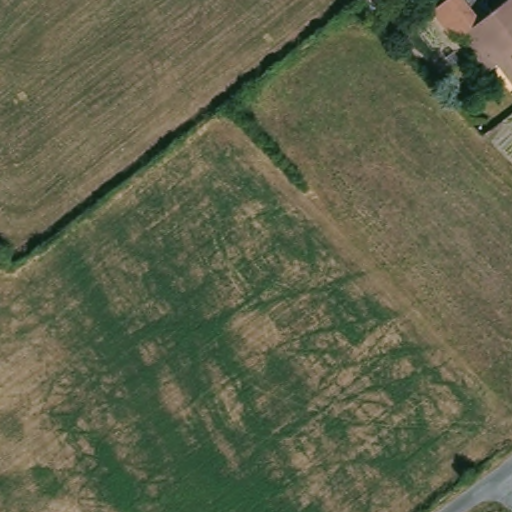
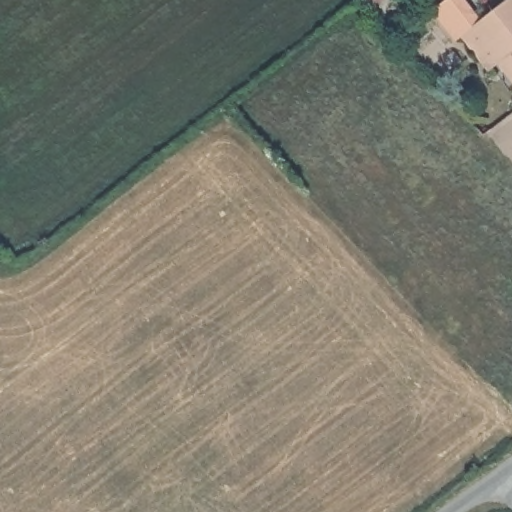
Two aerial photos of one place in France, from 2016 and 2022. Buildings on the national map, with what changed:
unchanged [(377,6),(369,14),(358,2),(356,0),(371,0),(377,6)]
unchanged [(504,61),(494,70),(467,36),(461,40),(437,10),(450,0),(471,0),(486,20),(511,0),(512,0),(512,71),(504,61)]

